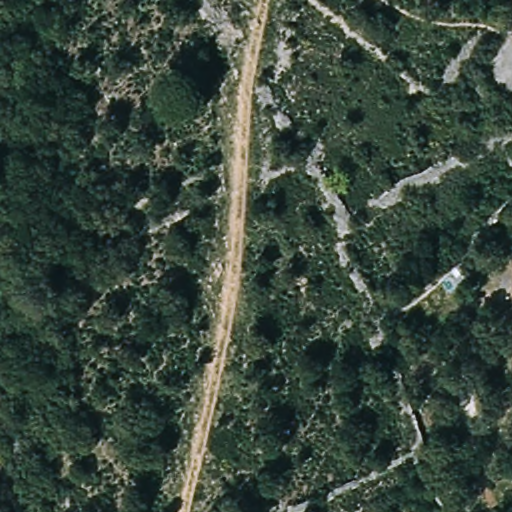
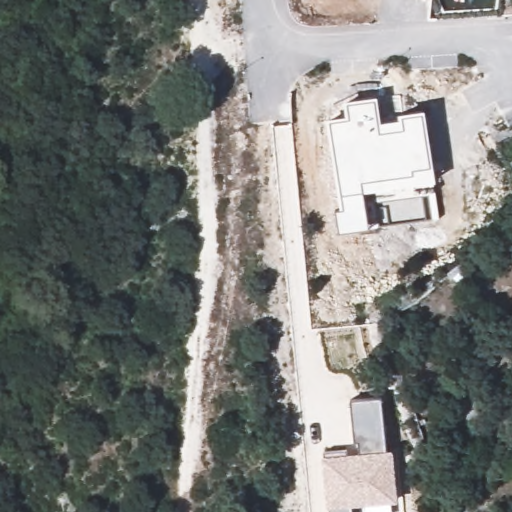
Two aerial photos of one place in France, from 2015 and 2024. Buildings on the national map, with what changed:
new [(346,116),(345,100),(377,95),(381,121),(399,118),(398,113),(425,108),(437,179),(364,191),(368,226),(340,232),(335,210),(340,209),(326,118),(346,116)]
new [(345,453),(360,451),(358,439),(355,440),(350,398),(380,395),(386,449),(393,448),(397,500),(351,505),(352,512),(328,512),(328,507),(327,507),(321,455),(323,455),(323,451),(345,448),(345,453)]

